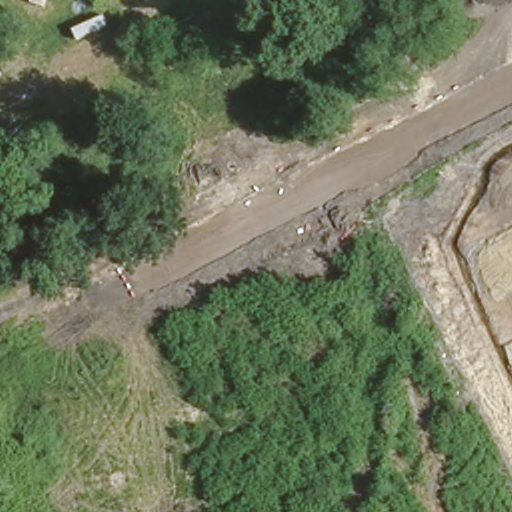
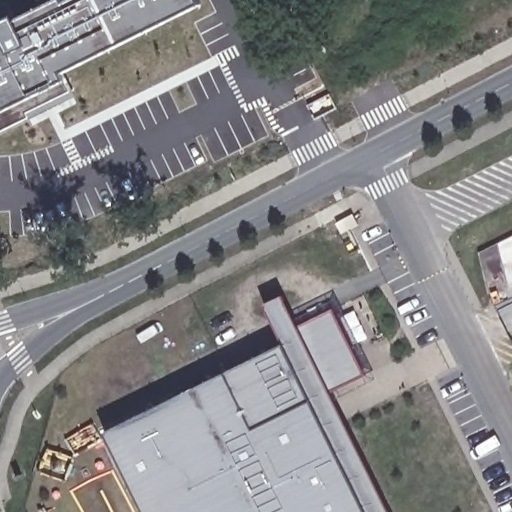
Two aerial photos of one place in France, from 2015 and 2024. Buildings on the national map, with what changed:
new [(67,80),(74,92),(30,114),(31,120),(0,134),(0,43),(4,41),(0,30),(0,24),(15,17),(17,21),(58,0),(62,0),(64,5),(74,0),(199,0),(201,6),(64,72),(67,80)]
demolished [(82,112),(0,155),(0,125),(71,89),(82,112)]
new [(270,330),(273,328),(264,312),(261,306),(282,297),(285,302),(292,318),(333,299),(376,386),(332,407),(382,512),(141,512),(102,433),(278,347),(273,337),(270,330)]

